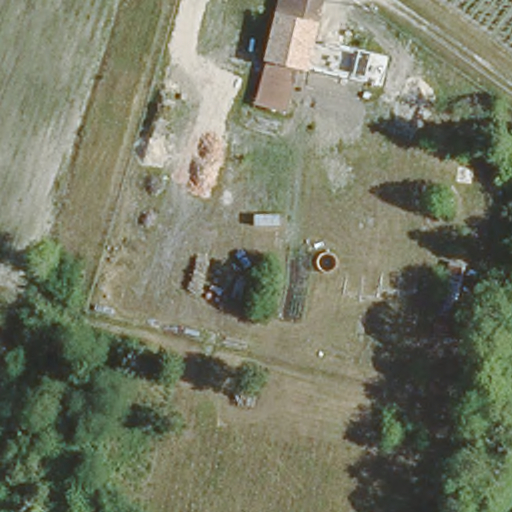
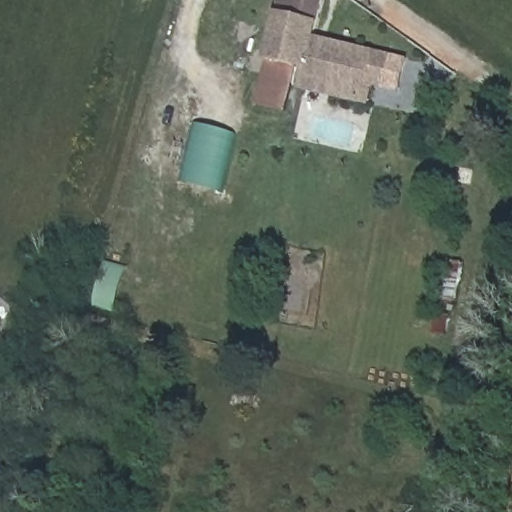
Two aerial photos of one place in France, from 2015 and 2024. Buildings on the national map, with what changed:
unchanged [(302,41),(271,34),(279,0),(321,0),(311,43),(302,41)]
unchanged [(302,41),(289,102),(256,94),(271,34),(302,41)]
new [(302,41),(311,43),(313,37),(392,55),(385,90),(372,87),(368,107),(365,105),(299,91),(303,69),(296,69),(302,41)]
demolished [(341,98),(336,121),(314,116),(319,92),(341,98)]
new [(221,191),(178,182),(193,125),(236,134),(221,191)]
unchanged [(460,260),(446,332),(430,330),(444,257),(460,260)]

